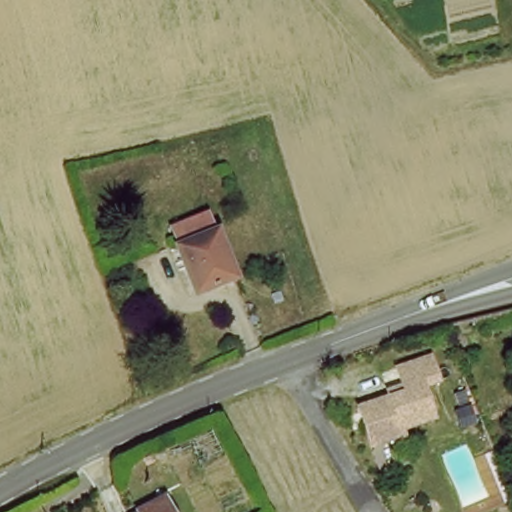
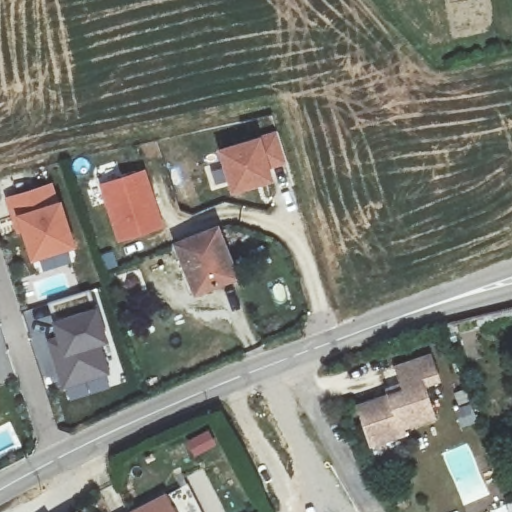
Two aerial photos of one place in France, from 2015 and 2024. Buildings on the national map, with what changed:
new [(261,136),(277,132),(287,164),(270,166),(273,181),(232,194),(219,149),(261,136)]
new [(146,169),(164,227),(119,242),(100,184),(146,169)]
new [(55,181),(62,201),(77,247),(32,263),(22,233),(16,235),(5,197),(55,181)]
unchanged [(193,287),(176,237),(218,225),(235,275),(193,287)]
new [(57,339),(52,322),(55,321),(51,304),(89,292),(92,311),(99,309),(108,343),(102,345),(111,374),(63,391),(48,341),(57,339)]
unchanged [(432,355),(441,378),(425,384),(438,416),(428,419),(404,365),(432,355)]
unchanged [(374,440),(362,407),(394,396),(392,390),(405,385),(398,367),(404,365),(428,419),(406,427),(409,433),(392,440),(377,446),(374,440)]
unchanged [(177,512),(145,512),(171,501),(177,512)]

